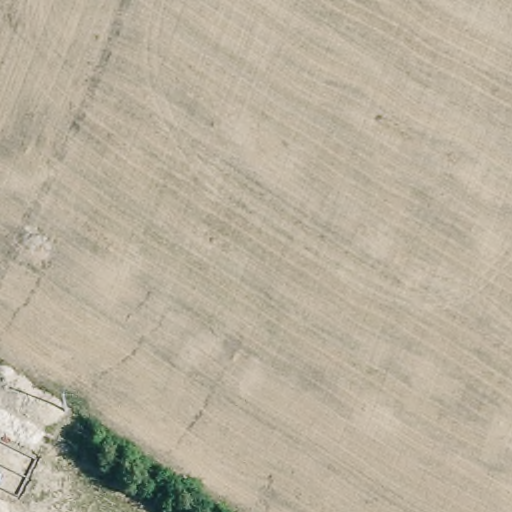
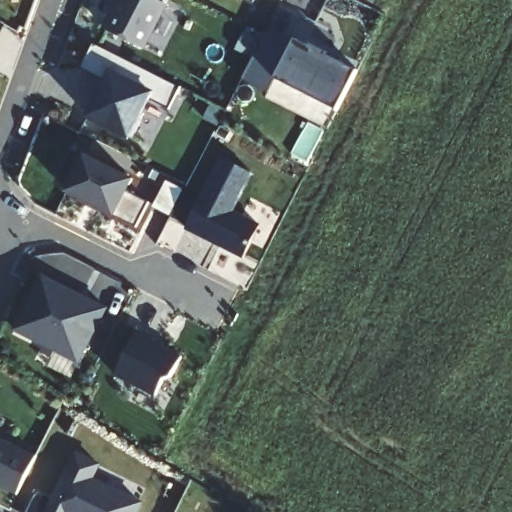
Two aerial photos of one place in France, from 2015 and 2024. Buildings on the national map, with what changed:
new [(121,0),(159,0),(168,5),(145,49),(108,30),(123,1),(121,0)]
new [(310,45),(311,43),(341,59),(340,61),(357,70),(337,110),(275,78),(295,38),(310,45)]
new [(93,42),(181,87),(170,109),(149,99),(130,136),(89,116),(101,92),(105,94),(111,83),(81,68),(93,42)]
new [(67,191),(85,155),(132,179),(126,190),(150,202),(137,227),(113,215),(97,206),(87,201),(67,191)]
new [(221,157),(251,172),(232,211),(260,225),(243,257),(185,227),(221,157)]
new [(42,276),(108,310),(80,366),(12,333),(42,276)]
new [(156,337),(155,340),(165,344),(165,347),(182,356),(173,377),(165,380),(157,395),(115,376),(139,329),(156,337)]
unchanged [(18,494),(0,485),(0,438),(36,456),(18,494)]
new [(38,492),(50,497),(55,493),(75,451),(101,464),(94,479),(144,502),(139,512),(29,512),(38,492)]

